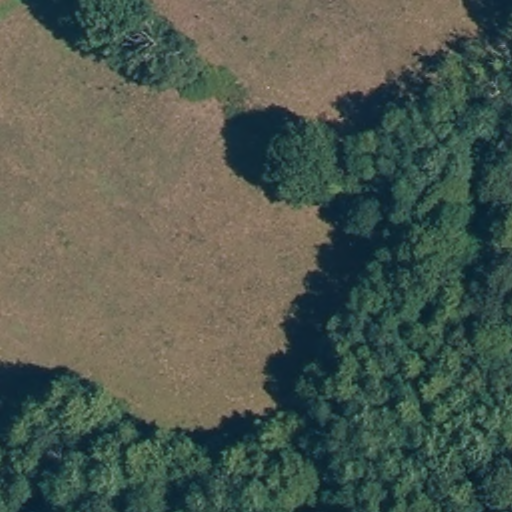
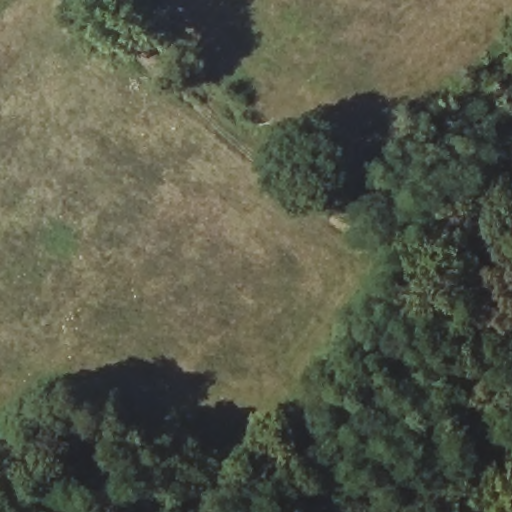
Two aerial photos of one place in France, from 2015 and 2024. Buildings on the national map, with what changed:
[]

